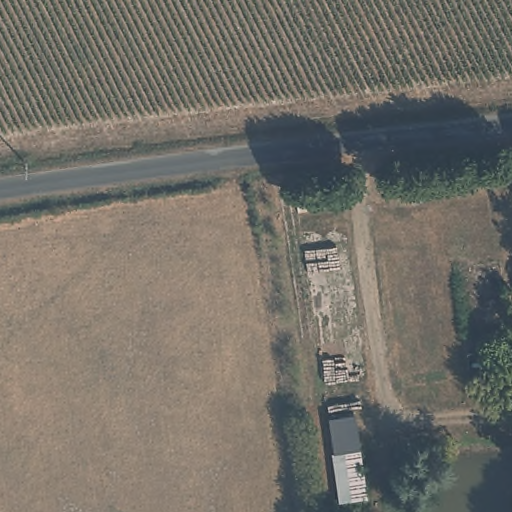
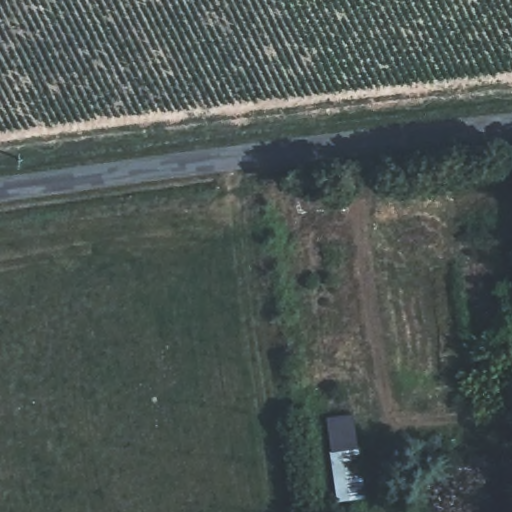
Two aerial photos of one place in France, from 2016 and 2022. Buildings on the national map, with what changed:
unchanged [(327,420),(360,415),(365,456),(372,502),(339,507),(332,460),(327,420)]

